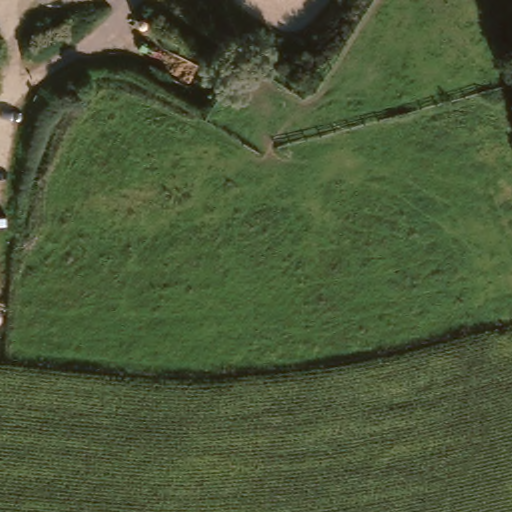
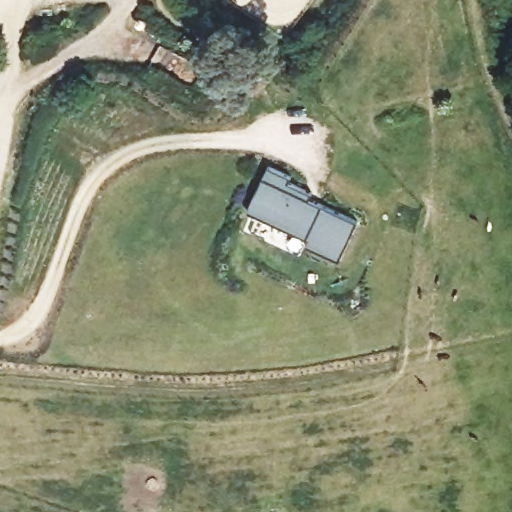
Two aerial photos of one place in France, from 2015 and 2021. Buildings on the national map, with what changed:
new [(306,247),(308,240),(248,210),(263,177),(270,166),(292,177),(289,182),(313,193),(309,199),(359,223),(339,261),(306,247)]

